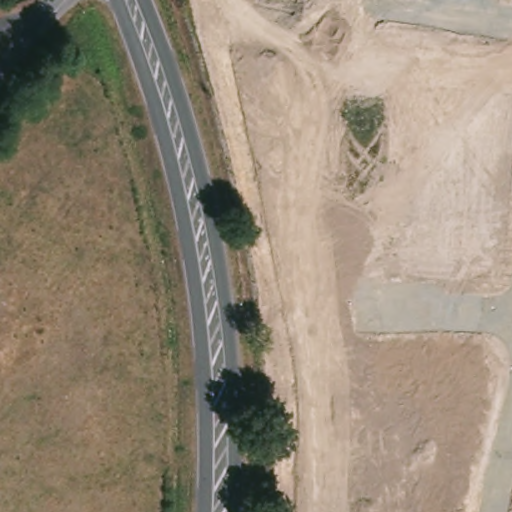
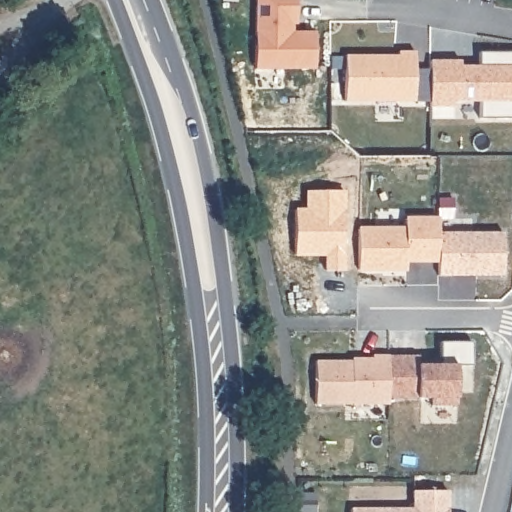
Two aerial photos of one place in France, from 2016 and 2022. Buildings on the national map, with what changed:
new [(250,0),(290,0),(290,25),(284,25),(284,33),(310,34),(310,70),(250,70),(250,0)]
new [(367,58),(376,58),(393,58),(393,54),(410,54),(410,72),(425,72),(425,104),(340,103),(341,57),(367,58)]
new [(425,63),(456,63),(456,69),(474,69),(474,55),(512,55),(512,121),(475,121),(475,104),(450,104),(450,109),(425,109),(425,104),(425,72),(425,63)]
new [(353,232),(399,232),(399,222),(433,222),(433,265),(400,265),(400,273),(352,273),(353,232)]
new [(438,275),(437,232),(501,232),(501,275),(438,275)]
new [(382,360),(412,360),(412,369),(434,369),(434,346),(467,346),(466,370),(450,370),(450,410),(426,410),(426,402),(382,402),(382,360)]
new [(310,365),(352,365),(352,362),(366,362),(366,360),(382,360),(382,402),(382,408),(310,408),(310,365)]
new [(442,496),(442,512),(407,512),(407,496),(442,496)]

